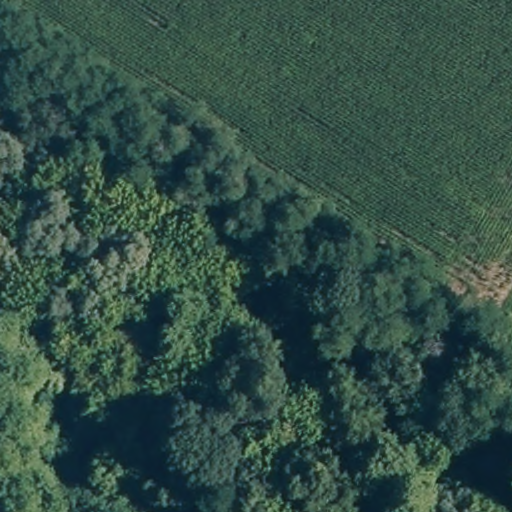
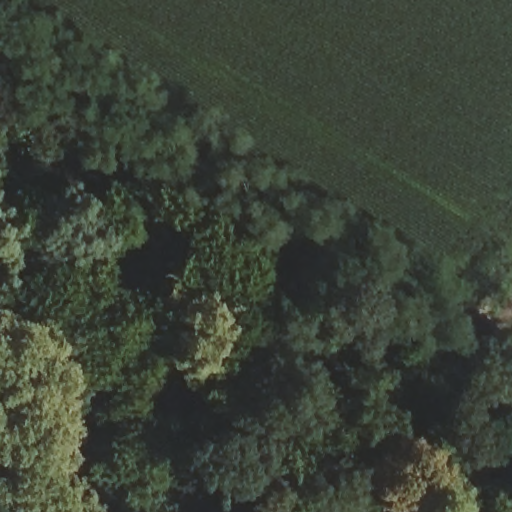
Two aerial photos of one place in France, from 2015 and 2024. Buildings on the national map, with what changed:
[]

